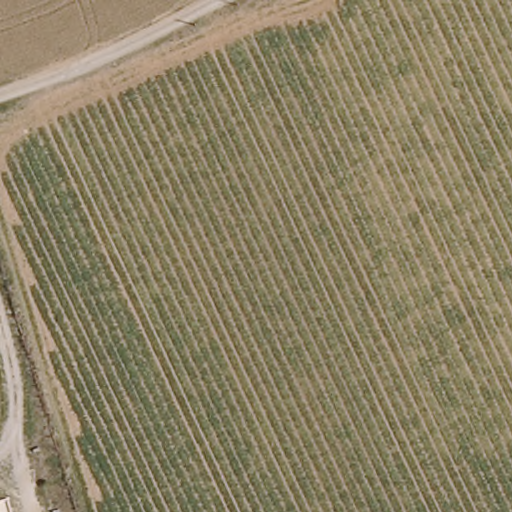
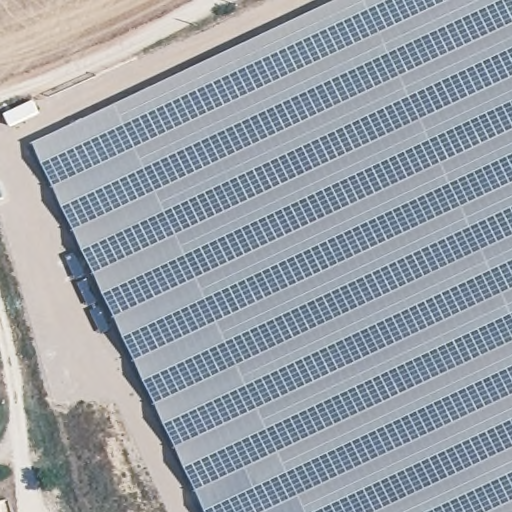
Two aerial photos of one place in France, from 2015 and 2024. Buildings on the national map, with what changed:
new [(33,146),(341,0),(512,0),(512,512),(207,512),(33,146)]

